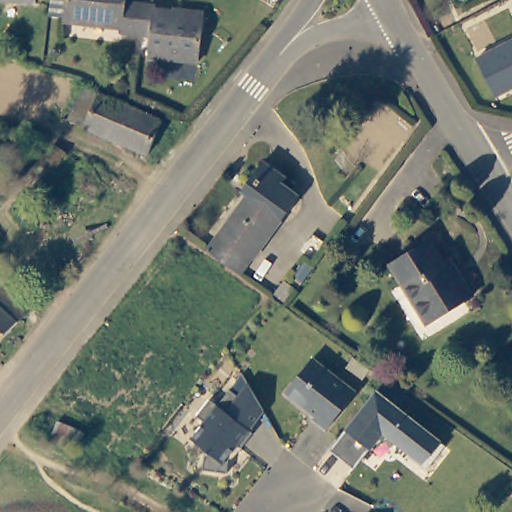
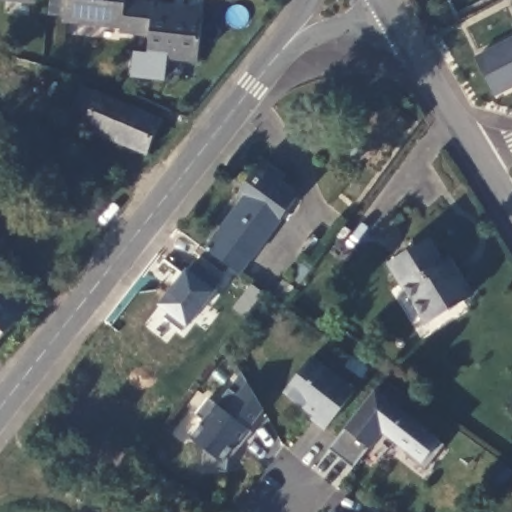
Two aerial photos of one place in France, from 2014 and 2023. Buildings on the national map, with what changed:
unchanged [(2,0),(29,0),(28,3),(2,0)]
unchanged [(114,27),(56,21),(58,0),(118,0),(118,1),(131,2),(128,36),(113,34),(114,27)]
unchanged [(147,4),(146,10),(174,13),(174,11),(194,14),(189,62),(141,56),(143,38),(128,36),(131,2),(147,4)]
unchanged [(469,59),(512,37),(512,83),(488,95),(469,59)]
unchanged [(69,121),(82,88),(160,119),(146,154),(69,121)]
unchanged [(233,274),(201,251),(245,193),(240,189),(262,164),(283,180),(278,186),(293,198),(233,274)]
unchanged [(11,182),(0,196),(0,173),(11,182)]
unchanged [(460,276),(472,295),(425,324),(388,265),(429,240),(454,280),(460,276)]
unchanged [(290,258),(301,266),(291,278),(281,270),(290,258)]
new [(217,293),(187,331),(183,335),(163,320),(168,314),(158,305),(187,269),(194,260),(222,283),(217,293)]
unchanged [(290,288),(283,299),(274,293),(281,281),(290,288)]
unchanged [(26,308),(0,335),(0,283),(26,308)]
unchanged [(312,358),(355,392),(326,430),(312,419),(314,416),(285,393),(312,358)]
unchanged [(229,389),(238,396),(248,383),(263,411),(248,430),(252,433),(240,448),(234,443),(226,452),(229,454),(227,473),(202,470),(205,450),(191,439),(204,422),(196,416),(209,399),(217,405),(229,389)]
unchanged [(371,449),(355,464),(331,448),(344,432),(376,392),(443,444),(423,467),(383,438),(371,449)]

